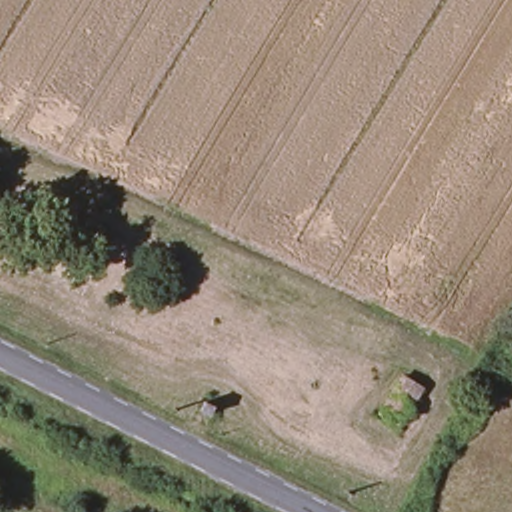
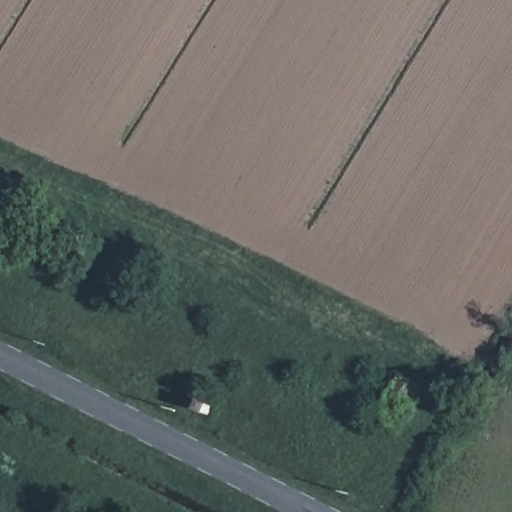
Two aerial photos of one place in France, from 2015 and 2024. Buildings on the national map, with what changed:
unchanged [(437,390),(411,430),(392,418),(420,379),(437,390)]

